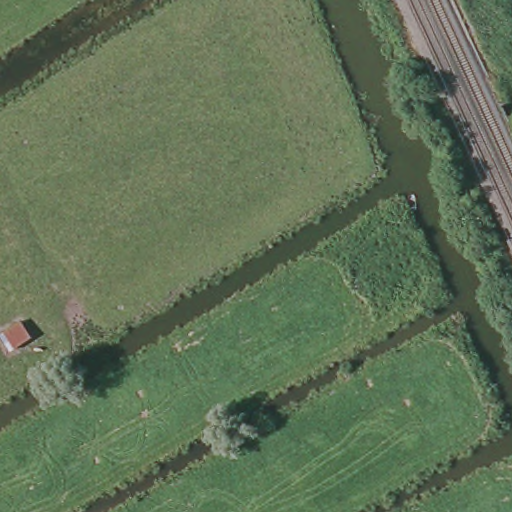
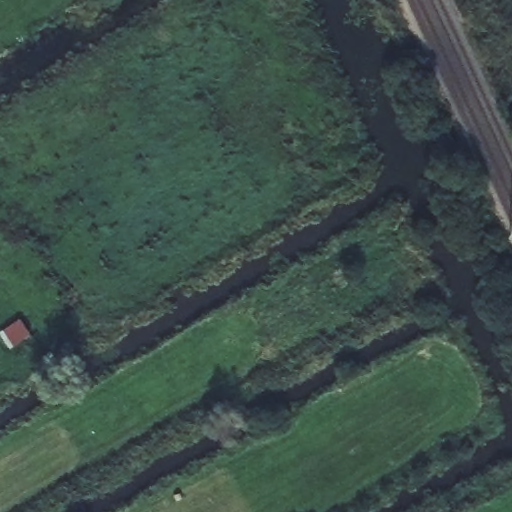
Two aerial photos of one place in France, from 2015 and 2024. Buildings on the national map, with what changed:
unchanged [(0,338),(0,331),(20,319),(31,343),(12,355),(0,338)]

